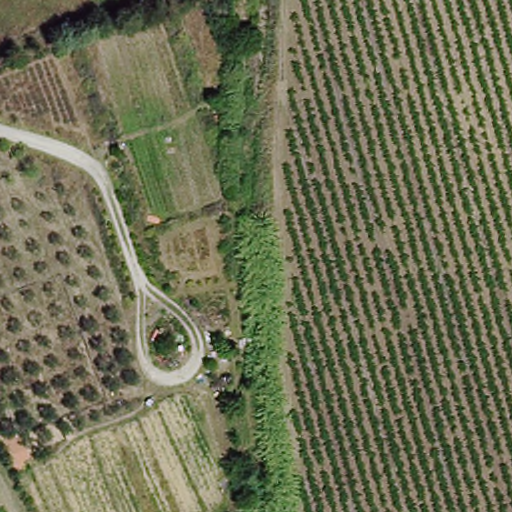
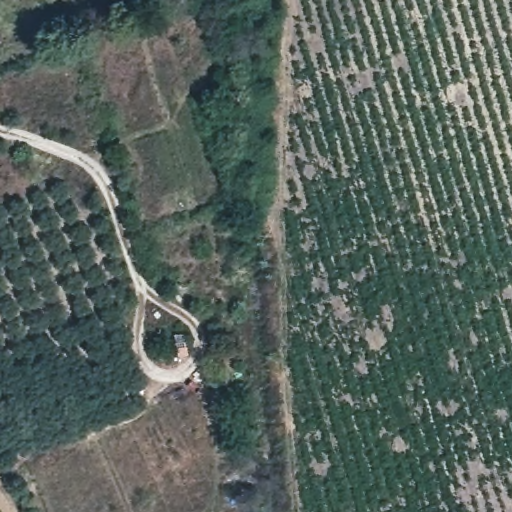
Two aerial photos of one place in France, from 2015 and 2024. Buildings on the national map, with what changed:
unchanged [(21,433),(30,457),(21,461),(24,469),(14,473),(2,441),(21,433)]

